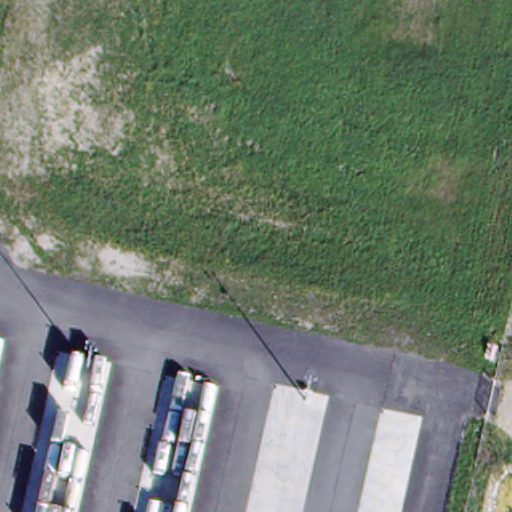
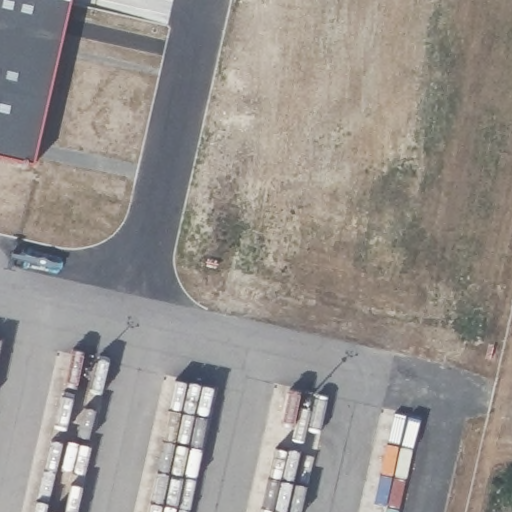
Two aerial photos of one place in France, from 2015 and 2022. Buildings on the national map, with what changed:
new [(38,161),(0,153),(0,0),(74,0),(38,161)]

